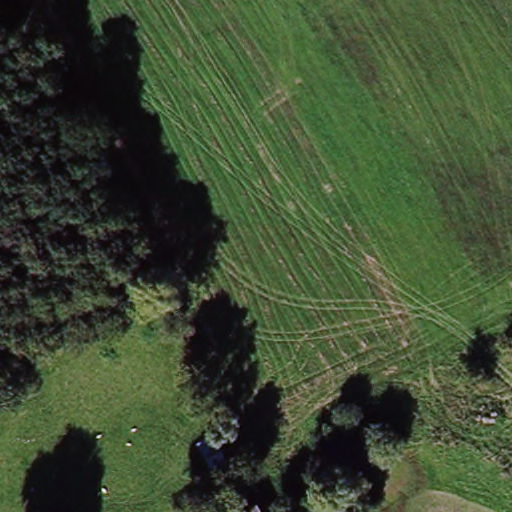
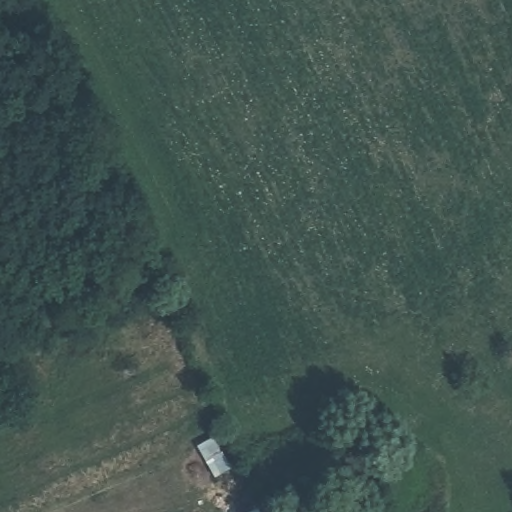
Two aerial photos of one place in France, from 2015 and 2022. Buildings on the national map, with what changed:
unchanged [(265,512),(264,512),(265,511),(265,512)]

